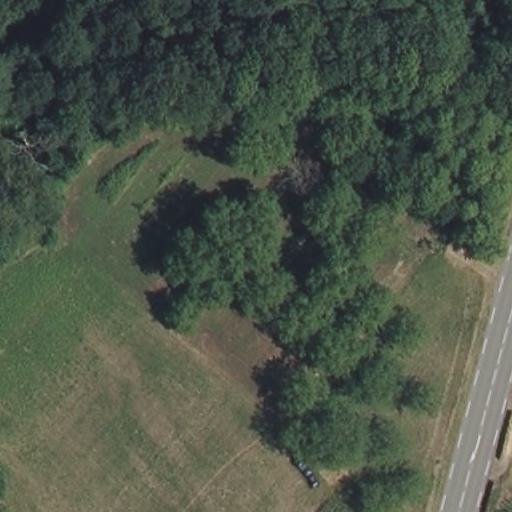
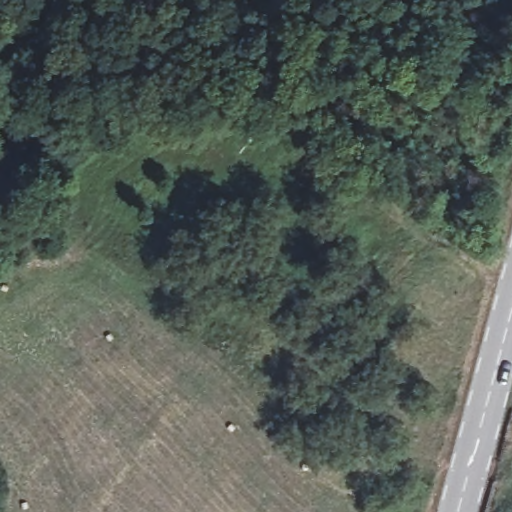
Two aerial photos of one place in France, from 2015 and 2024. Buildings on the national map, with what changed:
unchanged [(85,141),(96,158),(78,170),(67,151),(85,141)]

